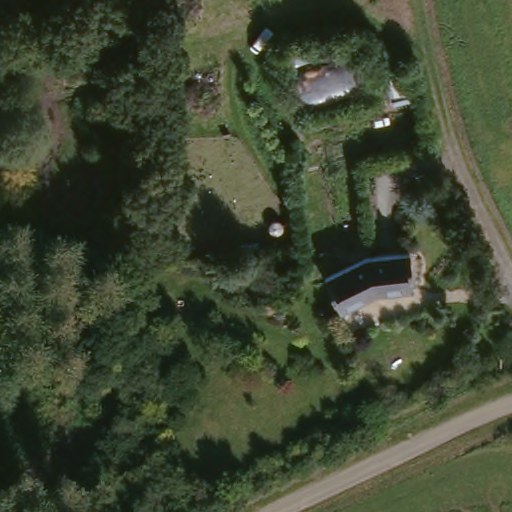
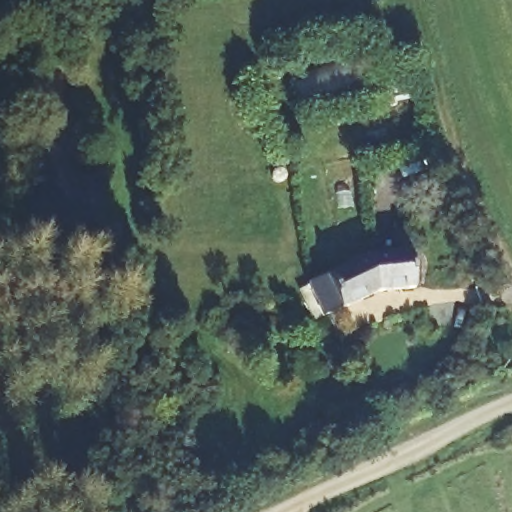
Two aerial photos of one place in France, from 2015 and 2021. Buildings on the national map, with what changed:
unchanged [(409,148),(399,102),(385,105),(379,76),(411,69),(416,93),(422,92),(433,142),(409,148)]
unchanged [(344,336),(333,310),(340,306),(327,273),(382,249),(420,248),(421,286),(393,286),(350,306),(361,329),(344,336)]

